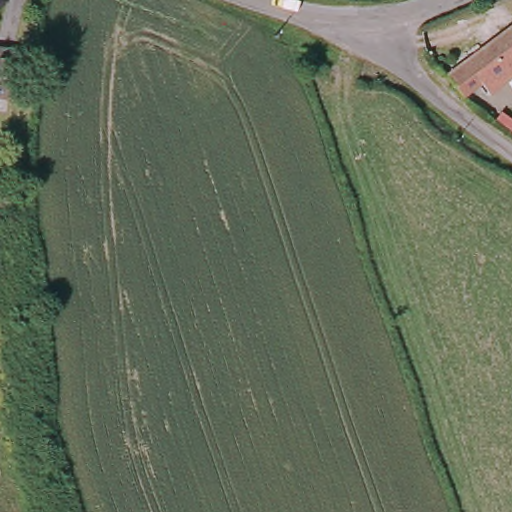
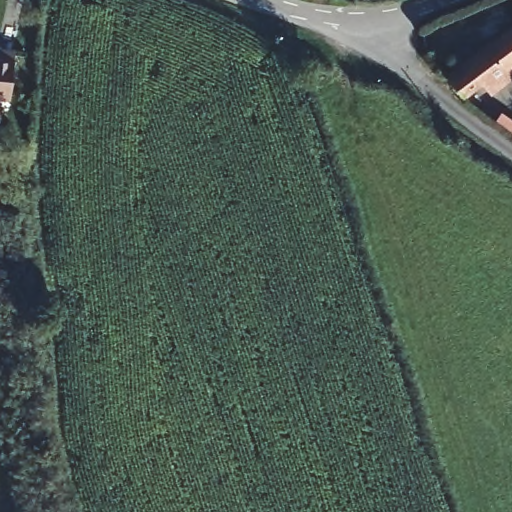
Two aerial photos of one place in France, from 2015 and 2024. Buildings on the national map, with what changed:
unchanged [(452,75),(444,71),(442,69),(441,69),(448,61),(459,66),(512,26),(512,59),(469,93),(453,74),(452,75)]
unchanged [(9,95),(0,94),(0,42),(19,46),(9,95)]

